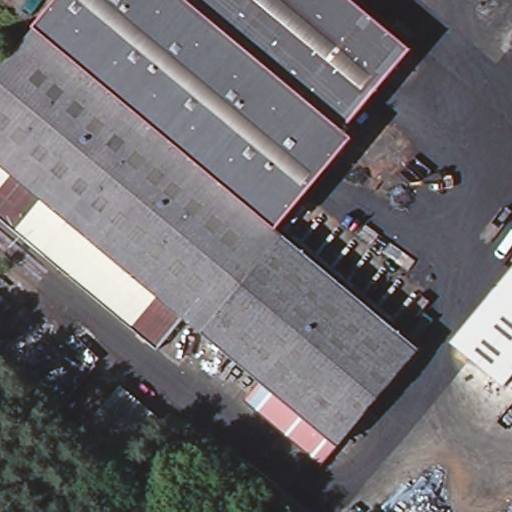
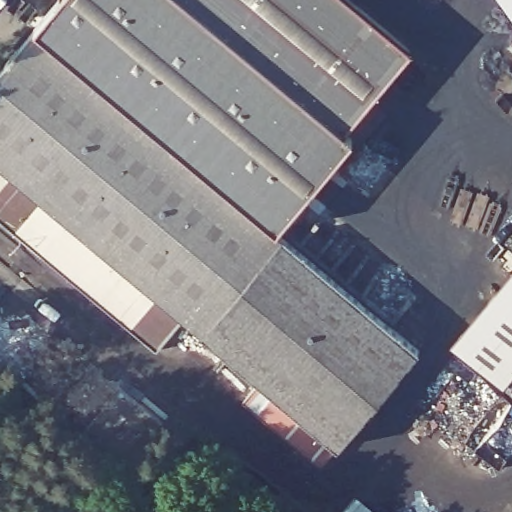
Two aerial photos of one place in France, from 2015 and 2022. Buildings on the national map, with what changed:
unchanged [(183,0),(350,140),(275,229),(262,217),(35,26),(56,0),(183,0)]
unchanged [(345,127),(355,135),(350,140),(183,0),(355,0),(412,48),(345,127)]
unchanged [(35,26),(262,217),(181,317),(0,166),(0,67),(35,26)]
unchanged [(155,350),(0,220),(0,166),(181,317),(155,350)]
unchanged [(275,229),(416,347),(335,445),(256,380),(181,317),(262,217),(275,229)]
unchanged [(512,362),(469,326),(512,275),(512,362)]
unchanged [(512,362),(512,379),(505,387),(453,344),(469,326),(512,362)]
unchanged [(256,380),(335,445),(319,464),(240,398),(256,380)]
unchanged [(122,472),(78,433),(117,386),(165,426),(122,472)]

